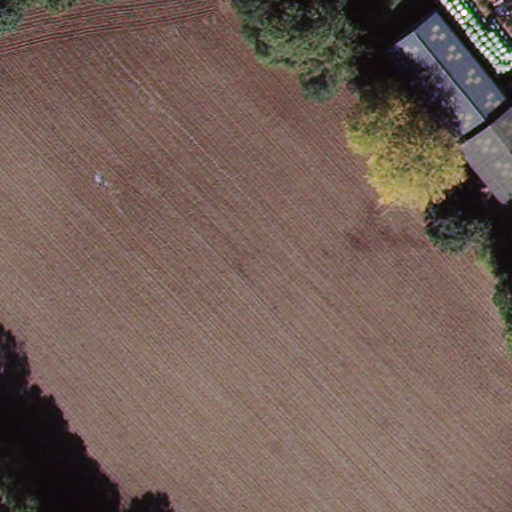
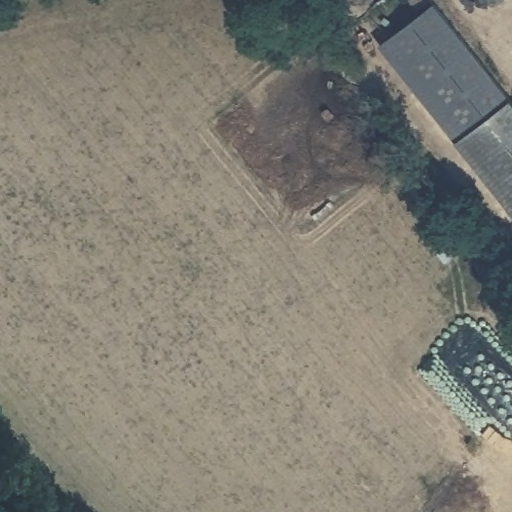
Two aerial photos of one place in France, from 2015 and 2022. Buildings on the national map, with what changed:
unchanged [(512,95),(512,98),(470,130),(497,166),(512,186),(512,209),(381,40),(435,1),(512,95)]
unchanged [(470,130),(512,98),(512,186),(470,130)]

